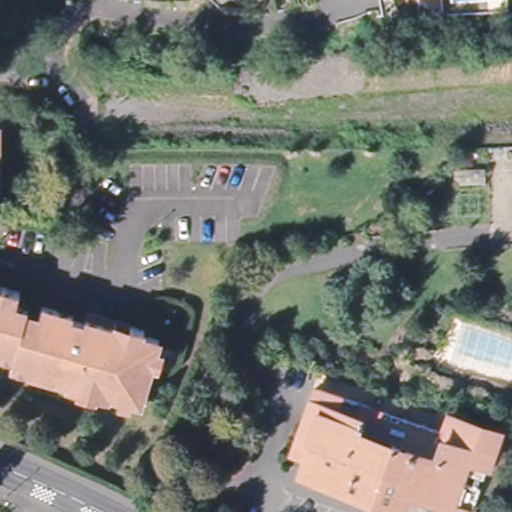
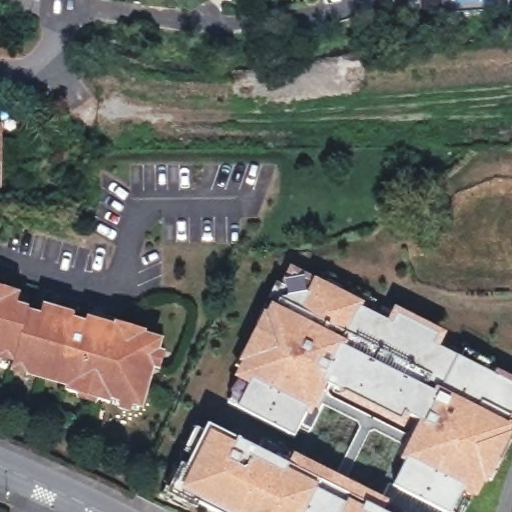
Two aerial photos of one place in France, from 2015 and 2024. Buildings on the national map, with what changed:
unchanged [(0,189),(0,129),(2,129),(1,190),(0,189)]
new [(276,308),(283,294),(306,292),(313,277),(361,300),(359,305),(387,317),(393,305),(447,332),(440,346),(512,382),(512,417),(509,423),(512,425),(512,433),(480,496),(463,488),(451,512),(446,512),(392,486),(407,461),(402,457),(422,420),(407,412),(402,420),(328,385),(314,413),(307,411),(294,435),(238,407),(250,383),(235,377),(271,303),(276,308)]
unchanged [(0,365),(0,285),(24,292),(20,305),(30,308),(43,313),(47,303),(77,312),(76,317),(89,322),(91,312),(106,317),(147,330),(146,336),(163,341),(160,352),(170,356),(164,375),(154,371),(149,369),(144,383),(150,385),(142,411),(136,408),(133,415),(122,411),(123,404),(113,401),(110,406),(100,402),(100,405),(81,399),(82,397),(68,393),(69,391),(30,377),(29,381),(9,375),(10,368),(0,365)]
demolished [(320,393),(444,436),(450,419),(499,437),(488,470),(464,463),(461,471),(458,481),(482,488),(474,512),(469,512),(426,497),(428,489),(411,483),(400,510),(305,477),(311,461),(314,452),(301,447),(320,393)]
new [(236,444),(239,438),(287,467),(292,455),(386,501),(380,509),(385,512),(227,512),(182,491),(210,432),(236,444)]

